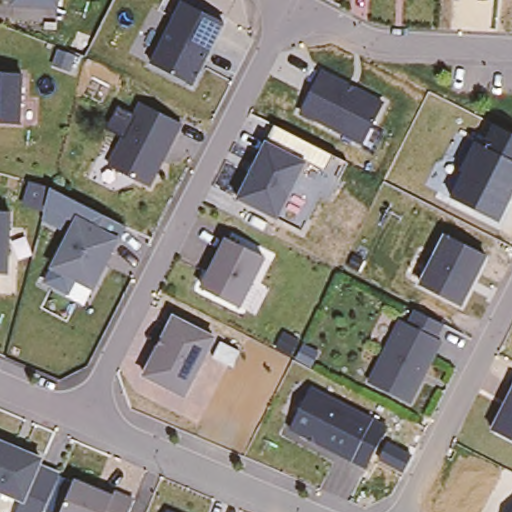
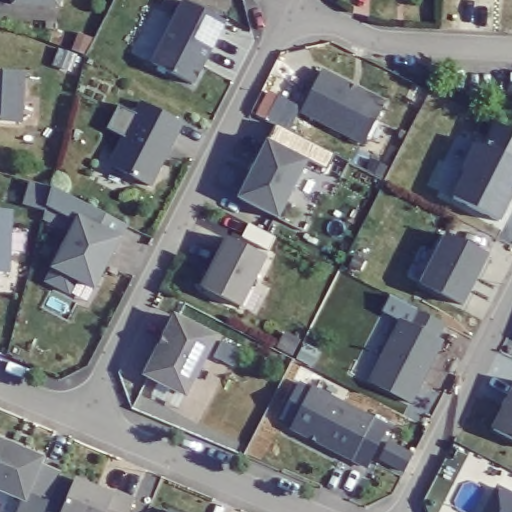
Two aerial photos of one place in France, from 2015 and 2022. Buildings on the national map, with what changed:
unchanged [(15,6),(15,0),(60,0),(60,8),(15,6)]
unchanged [(226,21),(193,85),(153,64),(185,1),(226,21)]
unchanged [(21,119),(0,118),(0,68),(24,69),(21,119)]
unchanged [(385,104),(363,144),(302,113),(323,71),(385,104)]
unchanged [(183,124),(151,187),(112,166),(144,104),(183,124)]
unchanged [(512,140),(512,198),(507,195),(503,203),(506,204),(495,227),(448,204),(461,179),(458,177),(473,148),(481,151),(491,131),(492,130),(512,140)]
unchanged [(336,184),(303,168),(263,147),(271,131),(345,169),(336,184)]
unchanged [(234,204),(263,147),(303,168),(275,224),(234,204)]
unchanged [(126,225),(95,288),(55,267),(87,204),(126,225)]
unchanged [(0,268),(0,206),(12,207),(9,268),(0,268)]
unchanged [(462,300),(422,279),(448,230),(488,251),(462,300)]
unchanged [(267,259),(241,308),(203,288),(229,239),(267,259)]
unchanged [(445,324),(437,339),(442,341),(410,403),(370,383),(401,320),(410,324),(417,310),(445,324)]
unchanged [(215,337),(185,394),(146,374),(175,316),(215,337)]
unchanged [(388,427),(368,467),(291,427),(311,387),(388,427)]
unchanged [(488,436),(512,390),(512,448),(488,436)]
unchanged [(25,499),(0,488),(0,439),(43,458),(25,499)]
unchanged [(115,496),(117,492),(135,499),(129,512),(63,512),(76,479),(115,496)]
unchanged [(170,512),(167,512),(167,511),(170,512)]

